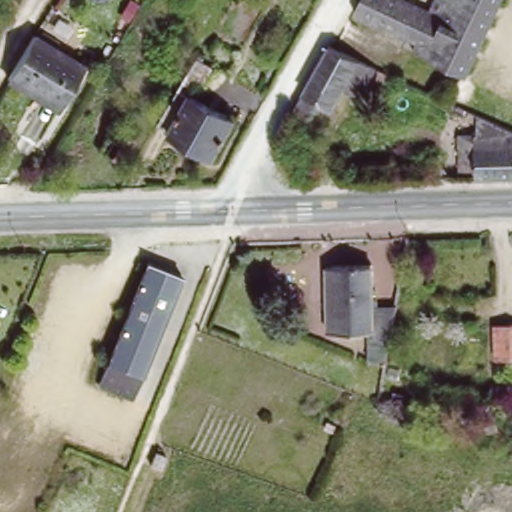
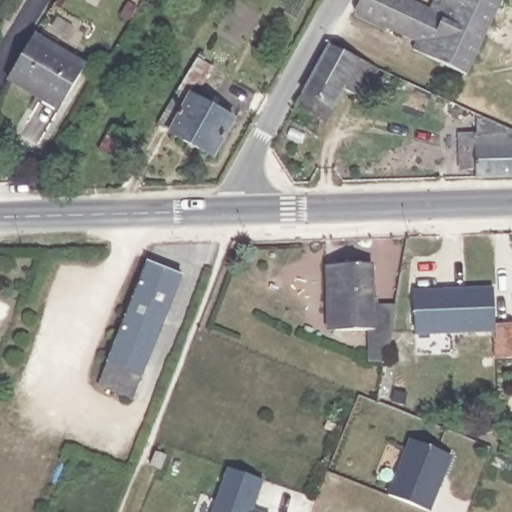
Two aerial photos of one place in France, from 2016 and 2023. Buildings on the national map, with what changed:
unchanged [(427,13),(433,0),(503,0),(468,74),(414,49),(418,41),(387,27),(385,30),(356,17),(359,12),(355,10),(360,0),(399,0),(427,13)]
unchanged [(89,60),(68,98),(46,85),(43,90),(14,72),(38,29),(89,60)]
unchanged [(294,103),(301,90),(327,39),(357,54),(376,63),(361,93),(342,83),(331,105),(324,117),(294,103)]
unchanged [(234,121),(213,156),(174,133),(173,134),(169,131),(171,129),(158,122),(197,57),(213,67),(202,86),(196,82),(188,93),(234,121)]
unchanged [(463,136),(478,136),(489,136),(489,119),(512,130),(512,178),(478,178),(478,172),(463,172),(463,136)]
unchanged [(115,126),(136,139),(123,161),(101,149),(115,126)]
unchanged [(369,329),(328,329),(324,262),(372,261),(373,303),(396,302),(390,336),(386,360),(371,359),(369,336),(369,329)]
unchanged [(181,280),(128,401),(98,387),(147,266),(181,280)]
new [(495,360),(494,330),(414,333),(413,290),(493,288),(494,327),(512,326),(512,360),(495,360)]
demolished [(512,326),(512,360),(495,360),(494,327),(512,326)]
new [(453,456),(431,512),(429,512),(388,494),(410,439),(453,456)]
new [(263,479),(253,512),(212,512),(226,468),(263,479)]

